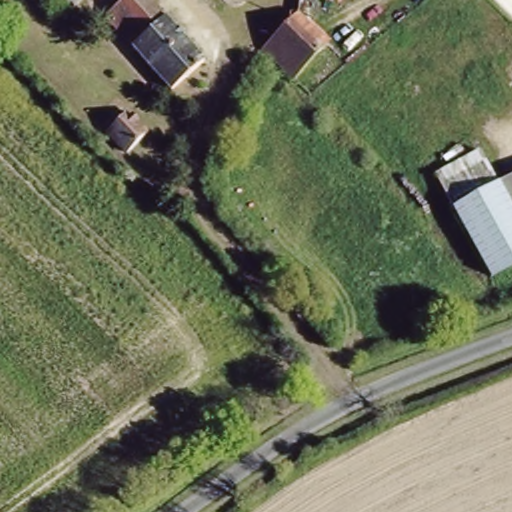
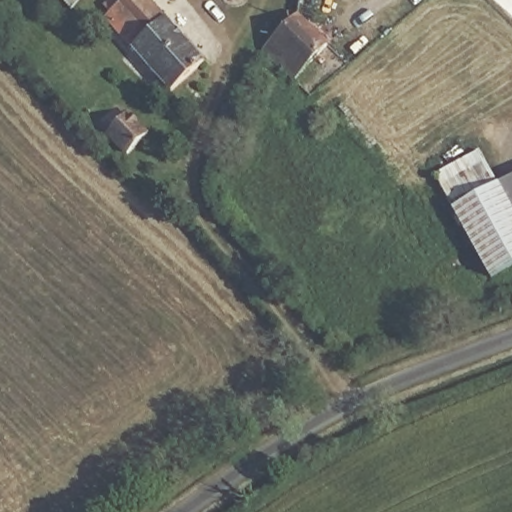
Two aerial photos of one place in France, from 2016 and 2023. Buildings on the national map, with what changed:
unchanged [(72,6),(64,0),(79,0),(72,6)]
unchanged [(200,60),(168,86),(103,18),(122,0),(147,0),(200,60)]
unchanged [(295,13),(325,41),(300,69),(272,41),(295,13)]
unchanged [(148,135),(123,155),(105,134),(128,112),(148,135)]
unchanged [(512,266),(491,278),(432,175),(477,150),(495,182),(512,174),(512,266)]

